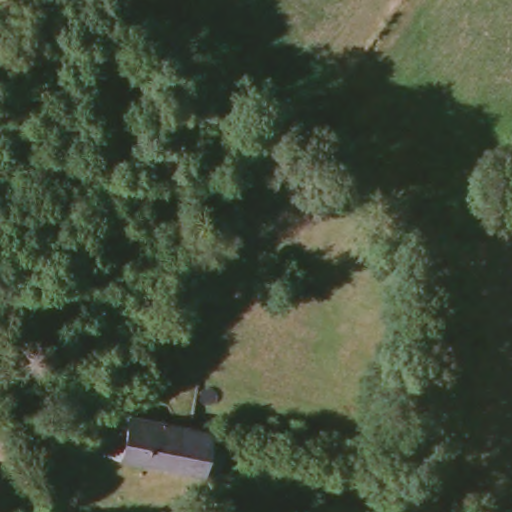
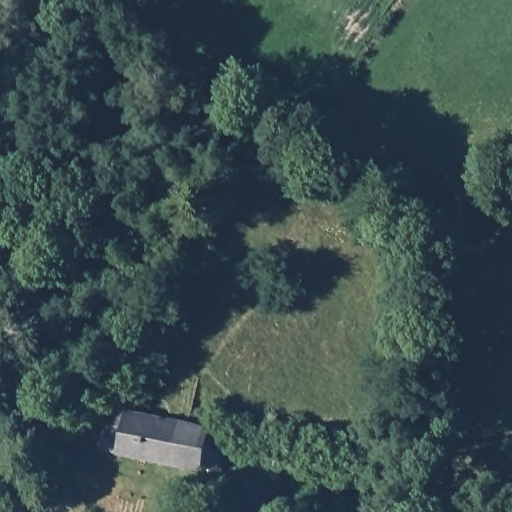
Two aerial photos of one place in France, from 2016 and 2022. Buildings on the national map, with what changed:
unchanged [(209,420),(207,435),(221,438),(217,468),(89,450),(105,408),(109,408),(209,420)]

